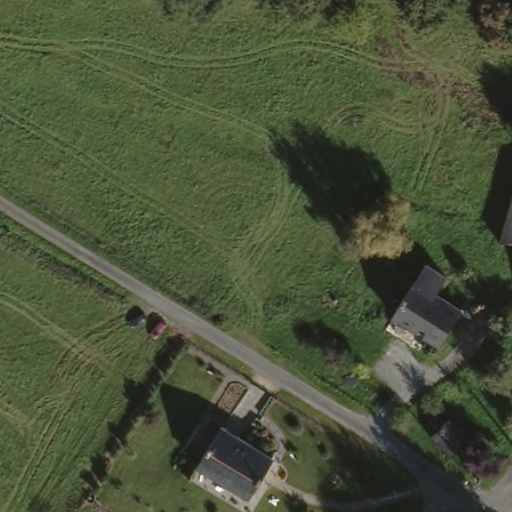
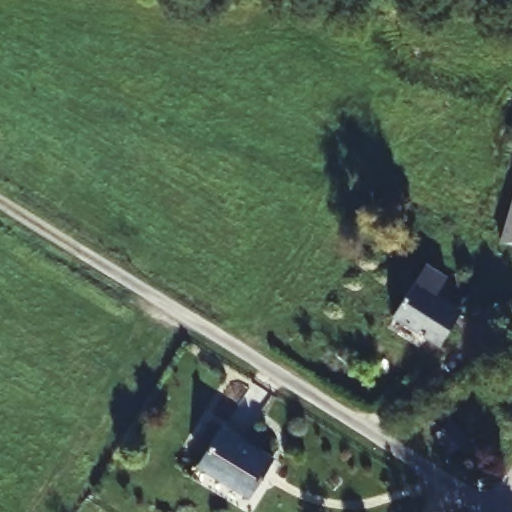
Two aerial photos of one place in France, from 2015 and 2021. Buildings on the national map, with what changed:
unchanged [(501,218),(512,186),(512,240),(507,238),(507,235),(501,218)]
unchanged [(423,261),(444,275),(433,291),(460,308),(436,343),(390,313),(423,261)]
unchanged [(467,440),(468,441),(460,449),(450,458),(432,440),(436,436),(432,431),(431,427),(432,422),(433,420),(437,418),(441,417),(446,421),(448,425),(452,422),(467,440)]
unchanged [(222,427),(272,457),(248,496),(197,466),(222,427)]

